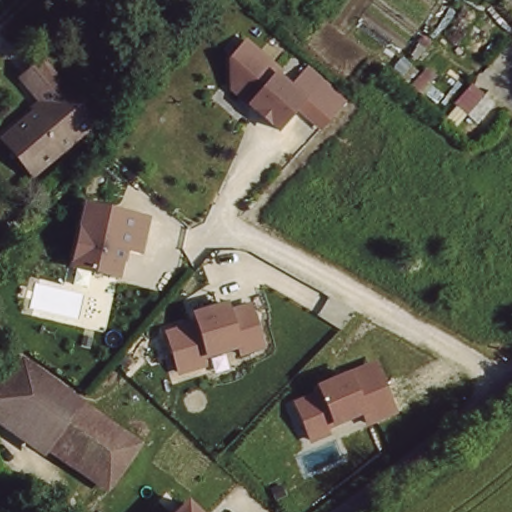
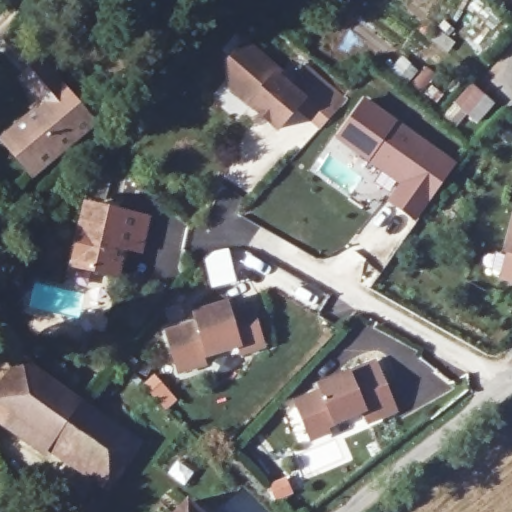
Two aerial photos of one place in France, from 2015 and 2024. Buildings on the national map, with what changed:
unchanged [(275,63),(295,83),(307,96),(295,109),(276,129),(246,101),(241,103),(225,91),(225,59),(246,35),(275,63)]
unchanged [(0,138),(11,130),(45,104),(37,93),(26,77),(42,62),(56,78),(94,124),(54,158),(32,177),(0,138)]
unchanged [(309,66),(350,101),(321,132),(295,109),(307,96),(295,83),(309,66)]
new [(453,162),(414,217),(390,200),(404,182),(338,136),(364,99),(453,162)]
unchanged [(150,212),(144,251),(125,247),(119,273),(69,262),(84,198),(150,212)]
new [(510,251),(507,250),(512,232),(512,280),(502,277),(510,251)]
unchanged [(242,357),(238,349),(207,358),(208,367),(178,376),(164,330),(197,319),(194,311),(232,301),(234,308),(254,302),(269,347),(242,357)]
unchanged [(399,412),(368,426),(363,415),(331,430),(332,435),(310,445),(293,398),(375,358),(399,412)]
unchanged [(9,422),(0,416),(0,386),(16,362),(46,382),(18,422),(12,418),(9,422)]
unchanged [(46,382),(75,400),(46,442),(18,422),(46,382)]
unchanged [(140,442),(114,480),(120,483),(114,491),(66,457),(46,442),(75,400),(140,442)]
unchanged [(192,512),(182,512),(188,507),(192,512)]

